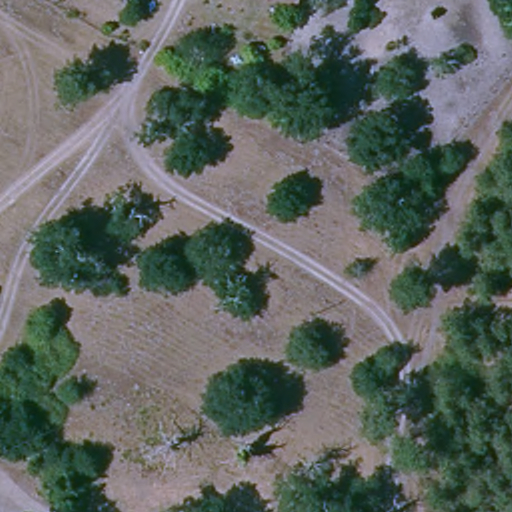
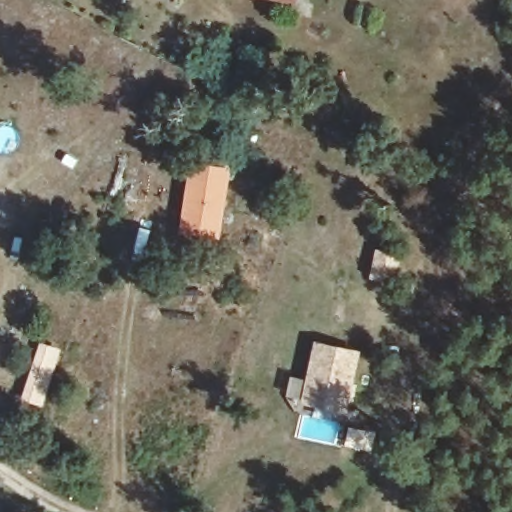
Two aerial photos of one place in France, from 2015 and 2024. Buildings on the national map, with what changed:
unchanged [(284,3),(269,0),(285,0),(284,3)]
new [(191,159),(231,166),(218,243),(177,236),(191,159)]
new [(44,401),(22,395),(40,340),(61,347),(44,401)]
new [(359,351),(346,413),(300,403),(314,341),(359,351)]

